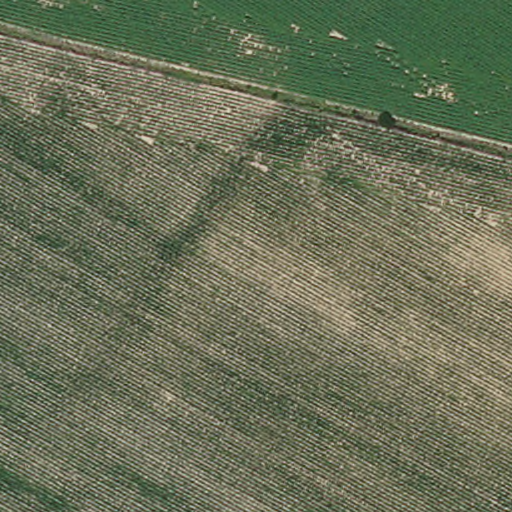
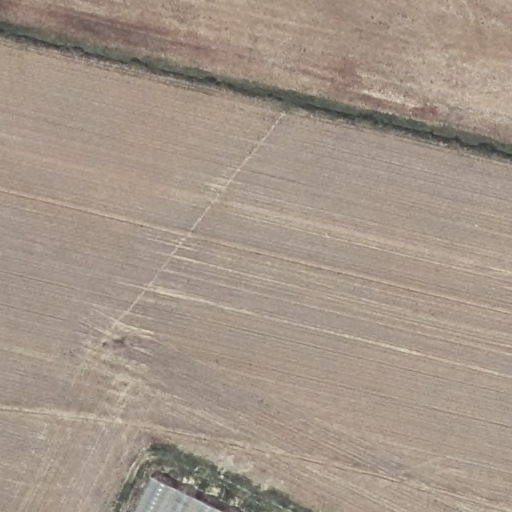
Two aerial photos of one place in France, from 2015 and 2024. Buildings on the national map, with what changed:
new [(138,512),(154,479),(222,512),(138,512)]

